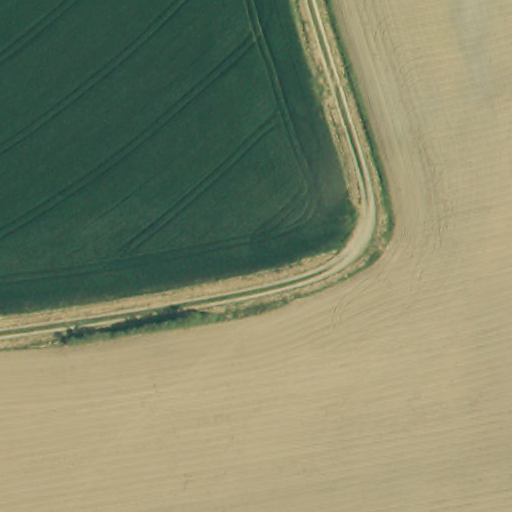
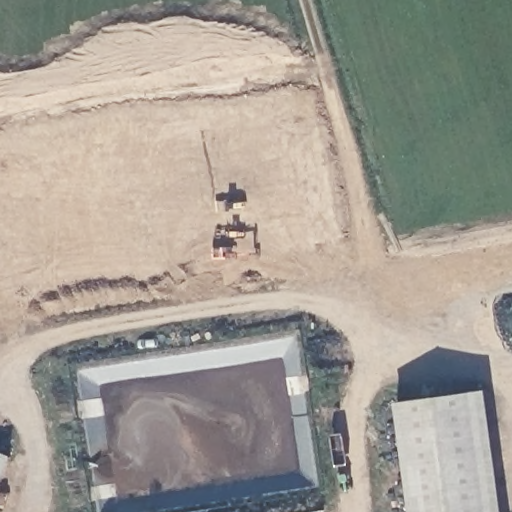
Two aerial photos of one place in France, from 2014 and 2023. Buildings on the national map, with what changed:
new [(508,512),(415,512),(397,400),(490,388),(508,512)]
new [(0,502),(0,448),(17,454),(0,502)]

